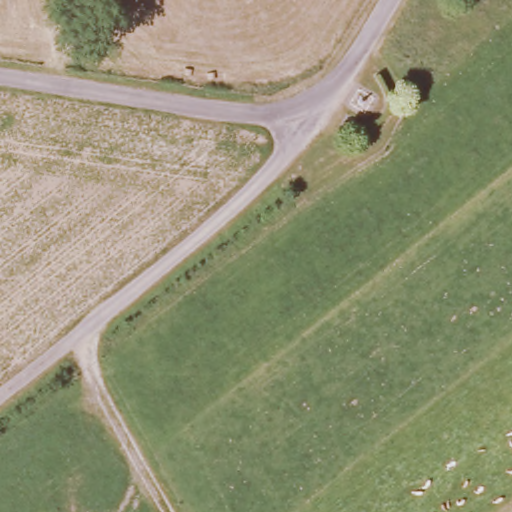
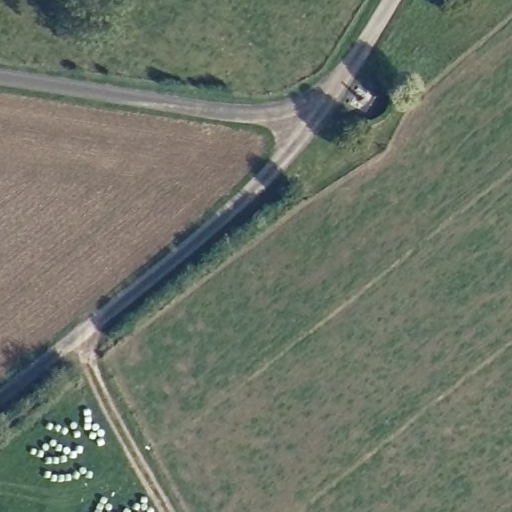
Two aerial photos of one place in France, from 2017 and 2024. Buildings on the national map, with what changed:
unchanged [(360,88),(375,98),(365,114),(349,105),(360,88)]

